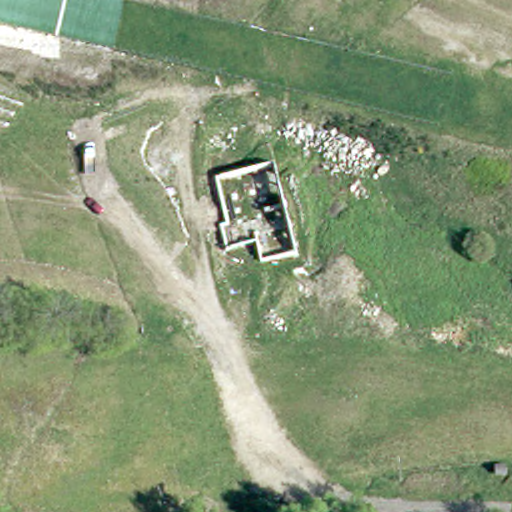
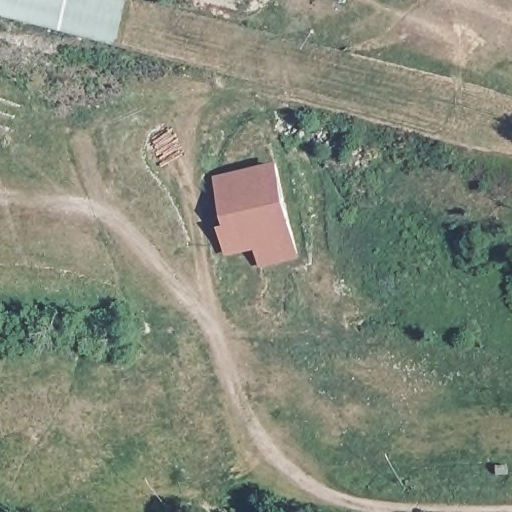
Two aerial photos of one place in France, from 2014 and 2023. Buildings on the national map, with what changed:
new [(277,160),(300,256),(258,265),(255,249),(224,256),(217,226),(223,224),(213,175),(277,160)]

